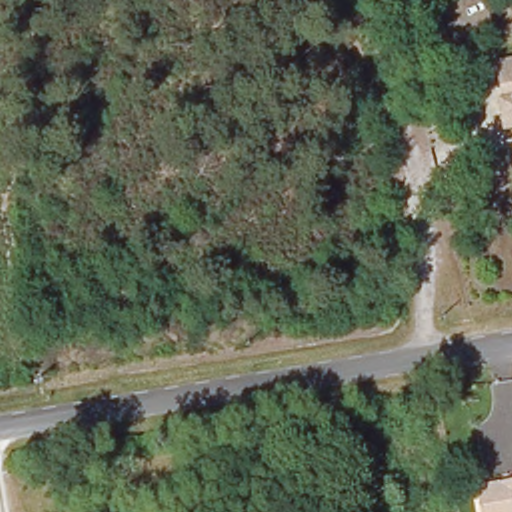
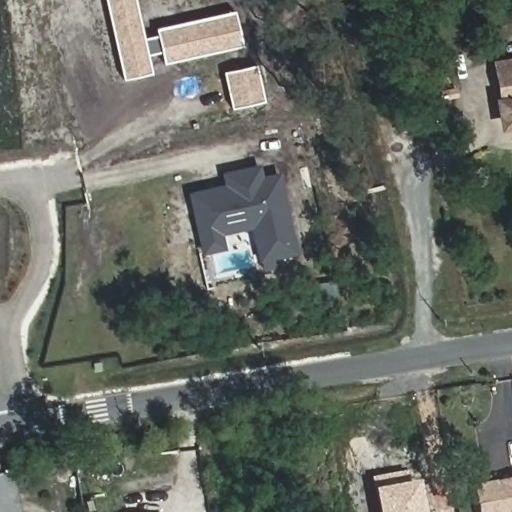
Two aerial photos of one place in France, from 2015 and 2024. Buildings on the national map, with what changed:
new [(149,40),(162,37),(162,30),(240,14),(247,49),(167,67),(166,55),(152,57),(155,75),(128,80),(110,0),(139,0),(149,40)]
unchanged [(499,94),(495,60),(512,57),(512,130),(501,132),(495,95),(499,94)]
new [(259,67),(267,102),(236,110),(227,74),(259,67)]
new [(192,195),(229,187),(227,175),(267,167),(268,177),(284,174),(303,254),(265,261),(257,230),(229,235),(232,249),(206,255),(192,195)]
new [(377,512),(373,490),(372,477),(407,471),(407,483),(418,482),(424,512),(377,512)]
unchanged [(475,512),(471,482),(512,477),(512,512),(475,512)]

